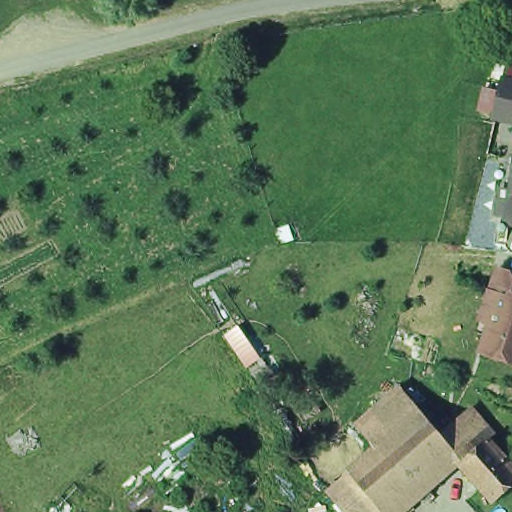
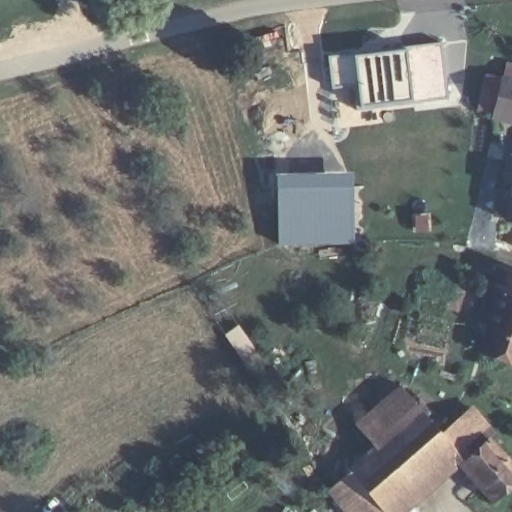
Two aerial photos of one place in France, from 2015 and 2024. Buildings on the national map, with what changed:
new [(57,1),(57,0),(67,0),(57,1)]
new [(448,100),(413,105),(412,100),(361,107),(358,86),(332,88),(329,57),(355,55),(406,49),(441,43),(448,100)]
unchanged [(512,76),(512,119),(492,114),(503,75),(512,76)]
new [(354,170),(354,244),(278,246),(275,172),(354,170)]
unchanged [(493,326),(482,322),(491,296),(494,297),(502,275),(512,279),(512,365),(483,355),(493,326)]
unchanged [(381,453),(366,435),(409,397),(425,416),(381,453)]
unchanged [(497,440),(494,443),(464,468),(456,455),(457,453),(444,439),(474,413),(497,440)]
unchanged [(457,453),(456,455),(388,512),(384,512),(354,477),(381,453),(425,416),(444,439),(457,453)]
unchanged [(512,465),(512,494),(498,506),(464,468),(494,443),(512,464),(512,465)]
unchanged [(354,477),(384,512),(347,512),(333,495),(354,477)]

